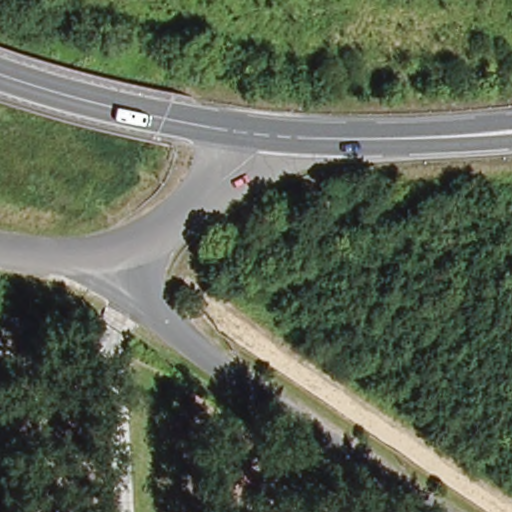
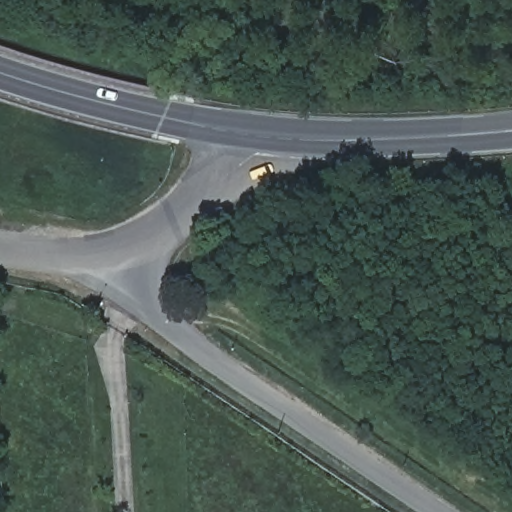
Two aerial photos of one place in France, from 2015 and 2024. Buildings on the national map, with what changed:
[]

